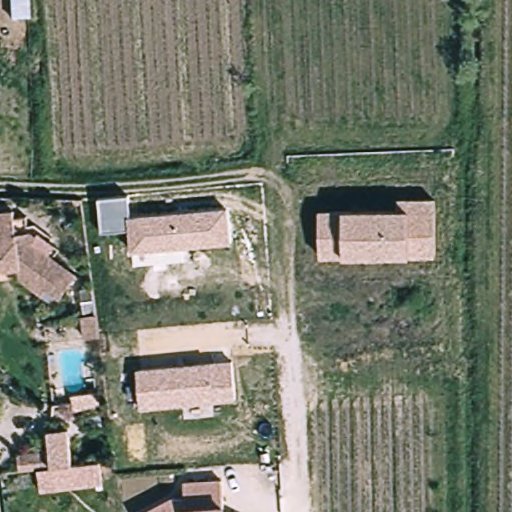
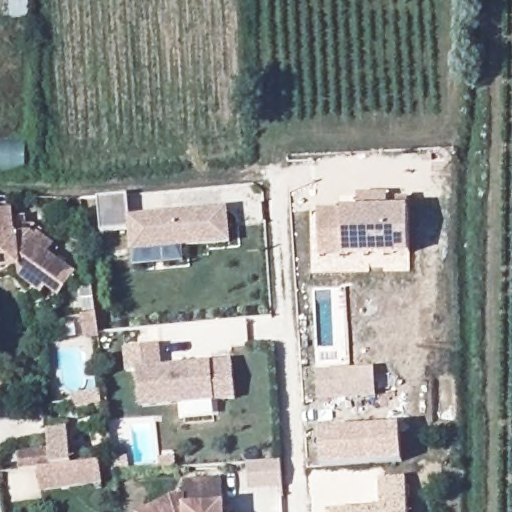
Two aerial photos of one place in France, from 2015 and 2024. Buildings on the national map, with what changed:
unchanged [(397,208),(397,198),(434,196),(437,250),(322,259),(318,214),(397,208)]
unchanged [(227,209),(230,243),(132,252),(130,231),(103,234),(99,200),(127,197),(129,217),(227,209)]
unchanged [(17,235),(32,233),(38,238),(34,243),(76,277),(62,290),(53,282),(43,296),(21,278),(20,268),(0,270),(0,230),(16,229),(17,235)]
new [(137,370),(127,372),(124,348),(160,345),(163,367),(137,370)]
unchanged [(230,363),(233,400),(212,402),(141,410),(137,370),(209,363),(230,363)]
new [(375,367),(376,398),(318,402),(316,371),(375,367)]
new [(399,422),(402,461),(320,466),(319,428),(399,422)]
unchanged [(40,472),(21,474),(19,455),(53,452),(56,469),(100,464),(103,487),(44,494),(40,472)]
new [(117,463),(129,461),(131,475),(118,475),(117,463)]
new [(281,461),(282,489),(249,491),(247,463),(281,461)]
new [(405,476),(408,512),(327,512),(327,511),(380,507),(378,478),(405,476)]
unchanged [(171,495),(184,494),(184,479),(222,477),(223,512),(141,512),(171,495)]

